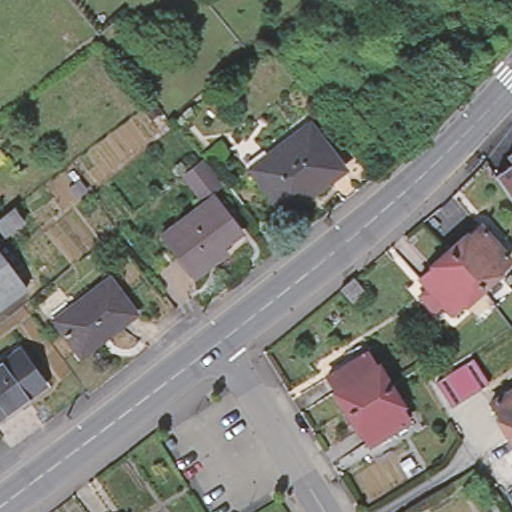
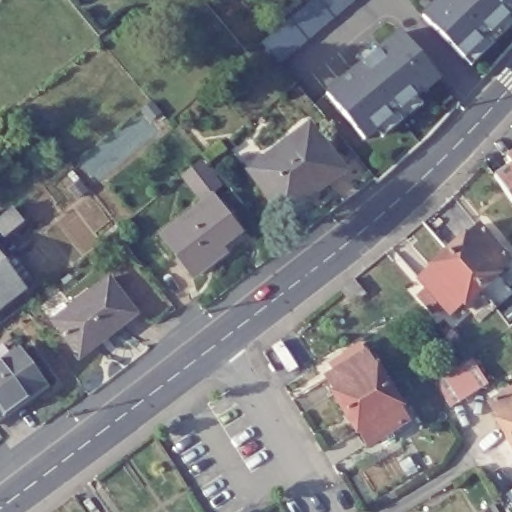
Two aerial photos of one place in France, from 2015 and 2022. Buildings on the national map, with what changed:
new [(262,42),(311,0),(355,0),(281,63),(262,42)]
new [(510,16),(464,59),(421,15),(436,0),(512,0),(512,18),(511,18),(510,16)]
new [(443,80),(420,98),(425,103),(383,138),(378,133),(367,142),(325,91),(399,29),(443,80)]
unchanged [(307,186),(305,184),(295,191),(297,195),(277,210),(245,166),(302,122),(334,163),(307,186)]
unchanged [(490,166),(508,153),(505,147),(512,142),(512,199),(490,166)]
unchanged [(217,245),(220,250),(190,273),(158,232),(211,193),(237,229),(217,245)]
unchanged [(503,256),(492,266),(491,270),(475,285),(440,245),(457,231),(460,233),(472,222),(503,256)]
unchanged [(459,298),(457,298),(444,309),(413,274),(426,262),(424,260),(440,245),(475,285),(459,298)]
unchanged [(0,303),(0,246),(27,283),(0,303)]
unchanged [(133,309),(103,332),(99,327),(73,346),(50,315),(105,273),(133,309)]
unchanged [(0,411),(0,356),(15,345),(41,382),(0,411)]
unchanged [(331,390),(333,387),(325,372),(363,349),(374,365),(376,363),(386,381),(342,409),(331,390)]
unchanged [(486,353),(502,378),(465,402),(448,377),(486,353)]
unchanged [(357,427),(353,426),(342,409),(386,381),(398,401),(396,402),(405,416),(365,440),(357,427)]
unchanged [(512,386),(512,431),(505,435),(495,418),(497,415),(488,400),(512,386)]
unchanged [(505,435),(512,431),(512,447),(505,435)]

